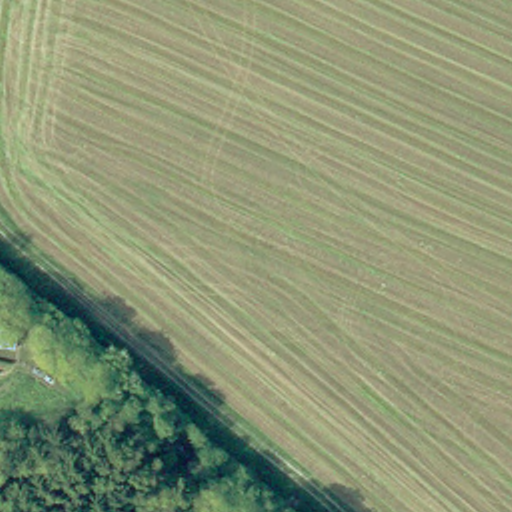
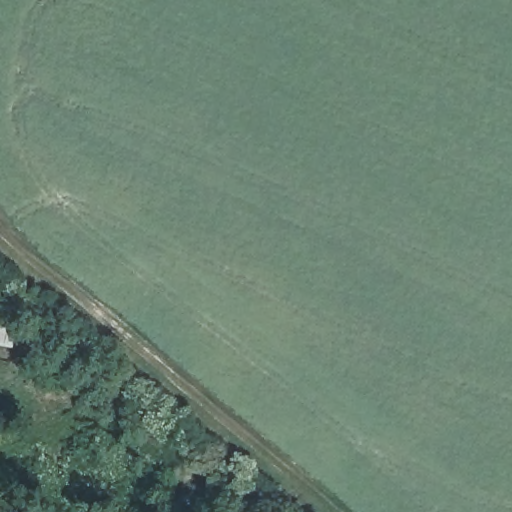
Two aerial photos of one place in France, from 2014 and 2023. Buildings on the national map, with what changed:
unchanged [(0,344),(0,325),(8,327),(19,336),(16,347),(0,344)]

